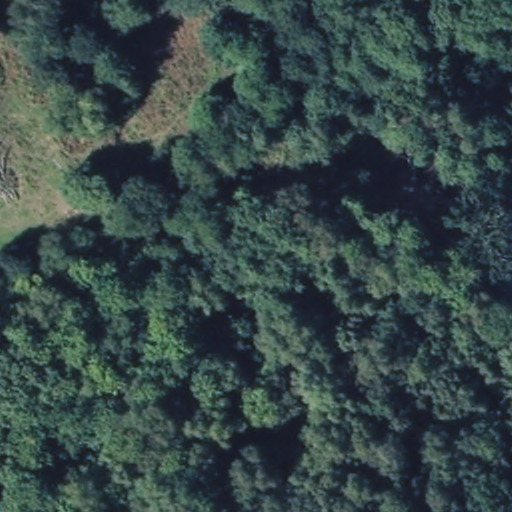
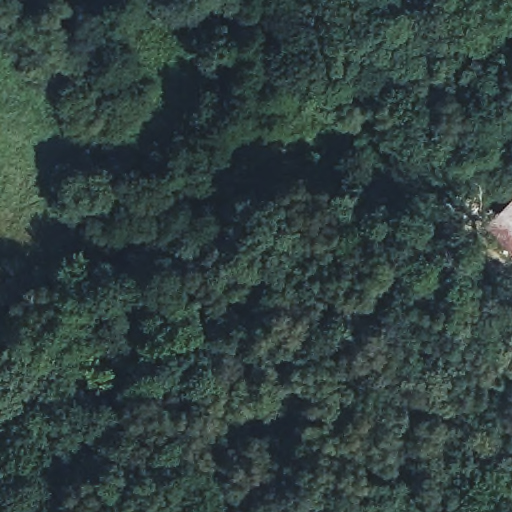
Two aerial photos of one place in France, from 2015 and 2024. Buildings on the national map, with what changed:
new [(492,232),(501,210),(512,199),(512,252),(492,232)]
demolished [(512,204),(512,237),(497,216),(512,204)]

